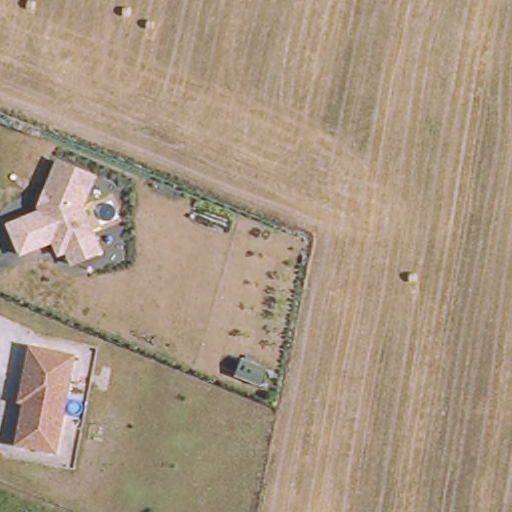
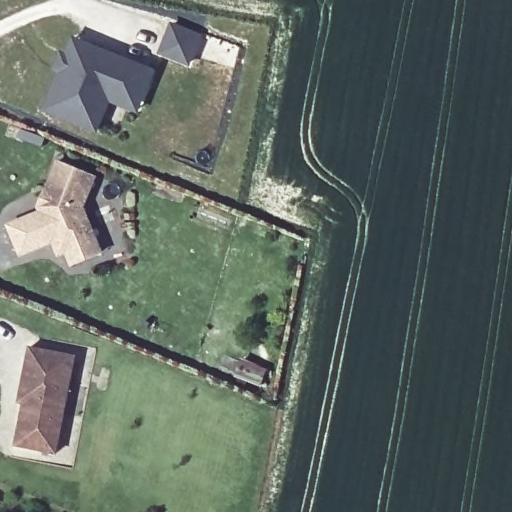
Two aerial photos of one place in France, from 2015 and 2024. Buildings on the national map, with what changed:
new [(202,35),(191,65),(159,54),(169,23),(202,35)]
new [(54,72),(60,50),(67,52),(72,39),(157,69),(139,114),(109,102),(97,133),(42,113),(57,73),(54,72)]
unchanged [(37,211),(36,204),(55,160),(97,177),(84,209),(102,255),(71,268),(65,256),(56,259),(51,246),(20,258),(5,225),(37,211)]
unchanged [(21,403),(17,403),(27,347),(74,354),(57,455),(13,446),(21,403)]

